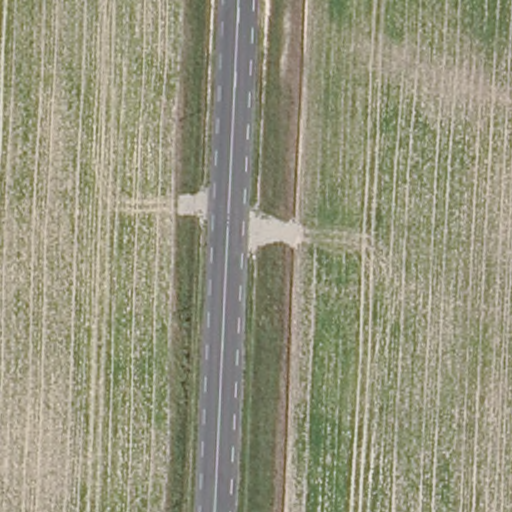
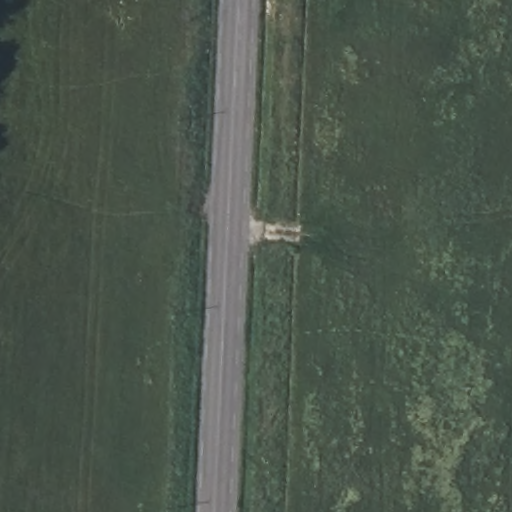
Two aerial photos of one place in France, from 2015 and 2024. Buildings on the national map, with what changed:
[]

